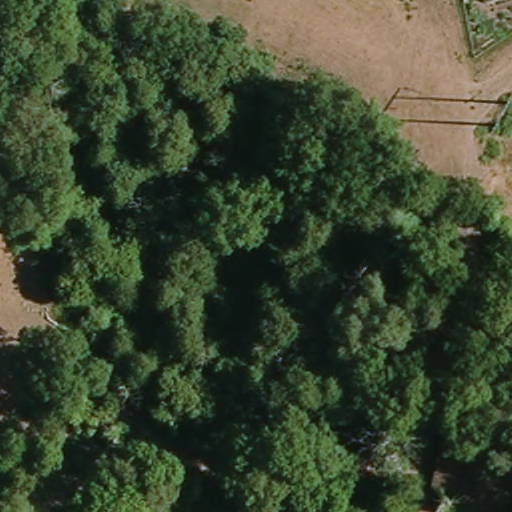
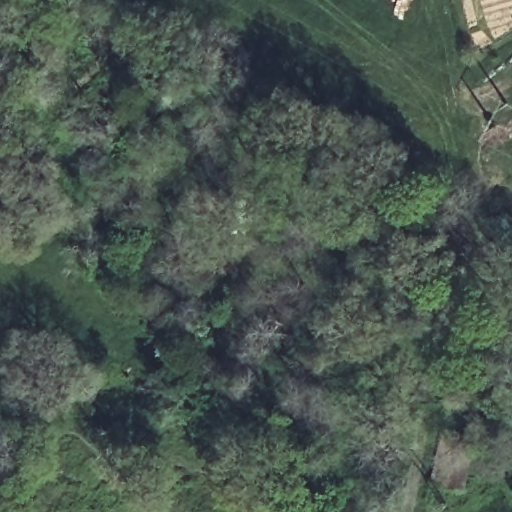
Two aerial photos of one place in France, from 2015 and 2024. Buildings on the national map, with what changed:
unchanged [(434,484),(441,431),(473,432),(466,489),(434,484)]

